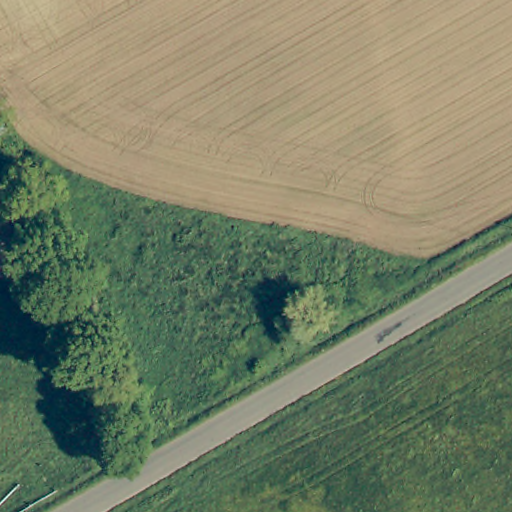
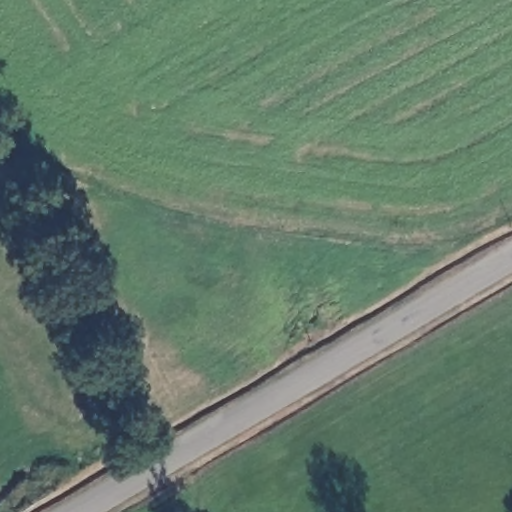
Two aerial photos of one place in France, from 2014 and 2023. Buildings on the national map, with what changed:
unchanged [(0,135),(0,129),(3,132),(0,135)]

